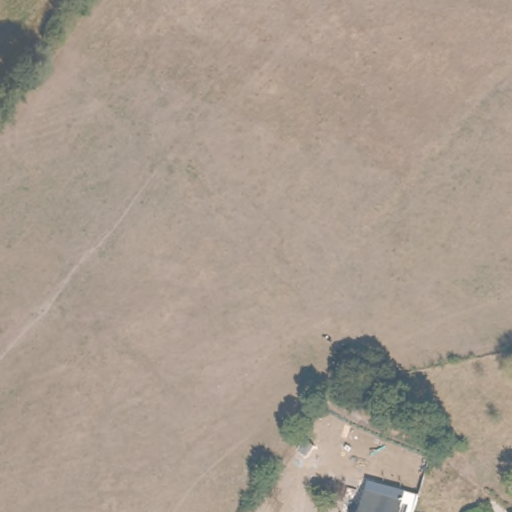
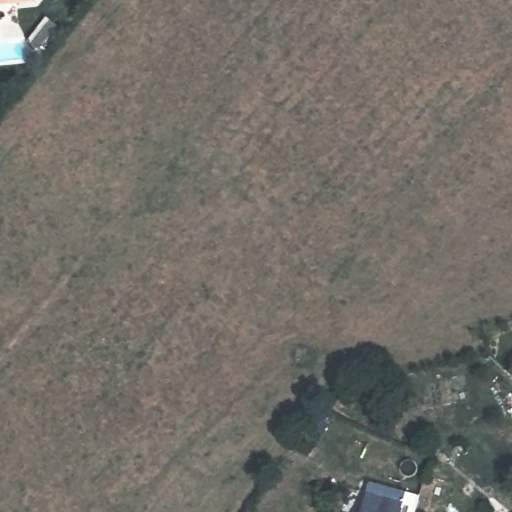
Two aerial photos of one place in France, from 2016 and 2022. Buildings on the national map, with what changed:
new [(33,2),(0,6),(0,0),(35,0),(33,2)]
unchanged [(369,489),(388,494),(404,499),(401,512),(360,512),(367,488),(369,489)]

